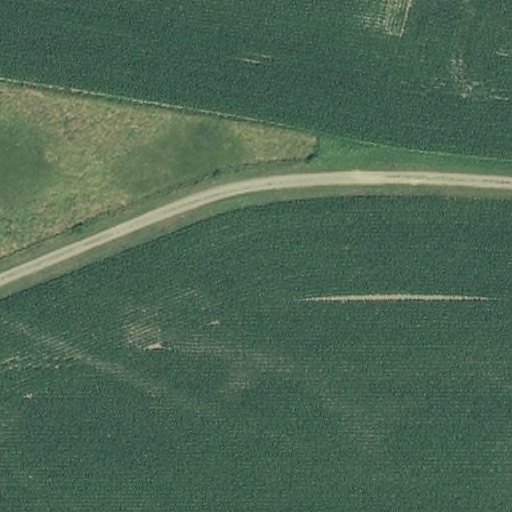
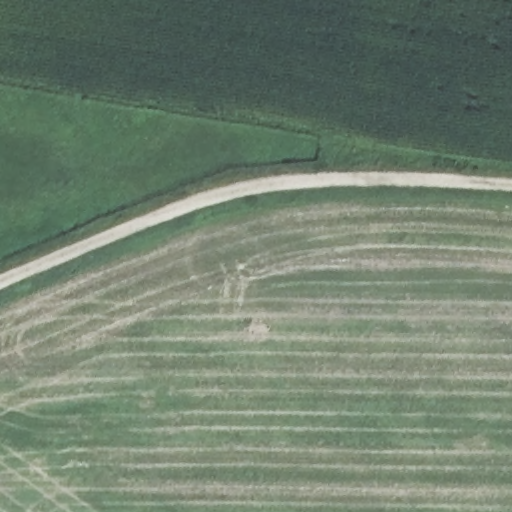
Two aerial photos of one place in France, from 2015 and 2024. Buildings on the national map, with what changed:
[]

